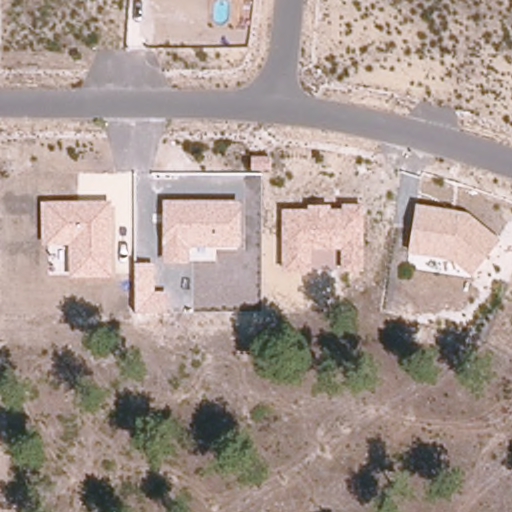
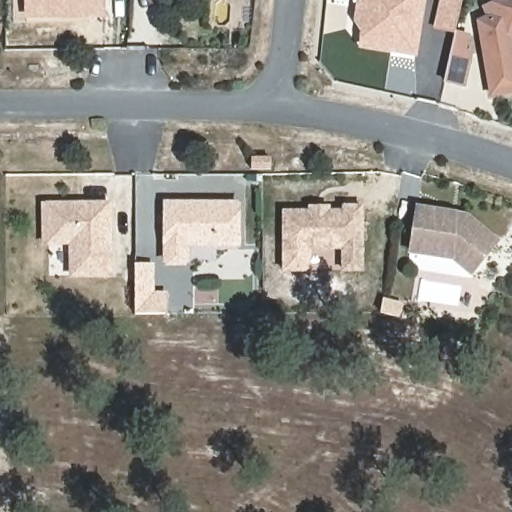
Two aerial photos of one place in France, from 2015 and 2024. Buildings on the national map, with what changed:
new [(106,0),(106,19),(25,19),(25,0),(106,0)]
new [(363,0),(428,0),(420,52),(394,47),(366,44),(368,28),(361,17),(363,0)]
new [(439,26),(445,0),(464,0),(457,31),(439,26)]
new [(476,20),(484,16),(481,7),(497,0),(512,0),(512,95),(489,100),(476,20)]
new [(445,84),(457,31),(471,34),(468,50),(474,51),(467,89),(445,84)]
unchanged [(113,276),(70,278),(69,245),(41,245),(43,201),(112,200),(113,276)]
unchanged [(240,246),(190,247),(190,265),(164,265),(166,200),(241,202),(240,246)]
unchanged [(364,270),(341,270),(341,251),(313,250),(312,270),(280,268),(282,208),(307,207),(307,204),(330,204),(330,209),(340,209),(340,202),(362,204),(364,270)]
unchanged [(473,276),(448,258),(408,252),(416,205),(464,212),(498,241),(473,276)]
unchanged [(154,291),(170,291),(169,312),(134,312),(136,262),(156,263),(154,291)]

